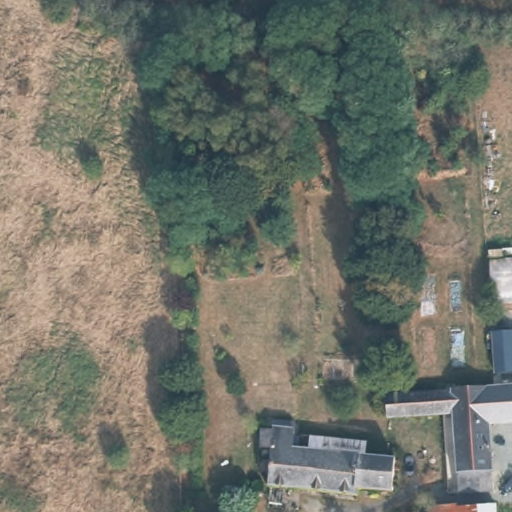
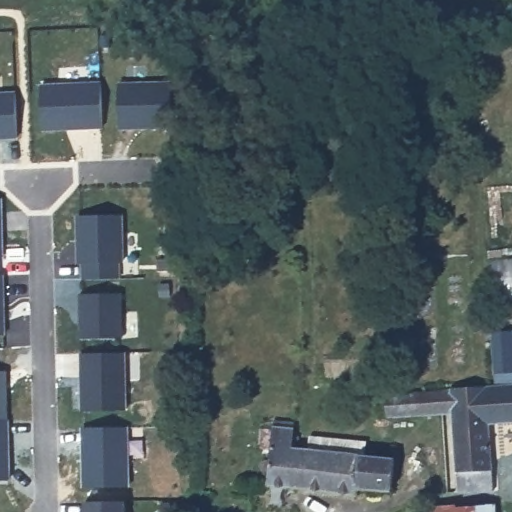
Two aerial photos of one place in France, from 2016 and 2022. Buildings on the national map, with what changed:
new [(102,85),(103,130),(44,132),(42,88),(102,85)]
new [(172,85),(172,129),(121,130),(120,85),(172,85)]
new [(16,95),(17,139),(0,140),(0,96),(16,95)]
new [(1,201),(2,261),(0,261),(0,201),(1,201)]
new [(122,217),(123,265),(119,265),(119,281),(84,281),(84,265),(79,265),(78,219),(122,217)]
new [(3,277),(5,337),(0,337),(0,277),(3,277)]
new [(122,296),(124,340),(82,341),(81,297),(122,296)]
unchanged [(492,346),(491,335),(511,333),(512,345),(512,374),(495,375),(492,346)]
new [(126,355),(127,412),(84,413),(82,356),(126,355)]
new [(7,374),(8,422),(0,423),(0,374),(7,374)]
unchanged [(512,384),(512,423),(488,424),(485,385),(512,384)]
unchanged [(457,471),(452,411),(450,387),(485,385),(492,469),(494,488),(461,491),(457,471)]
unchanged [(450,387),(452,411),(442,411),(385,413),(384,390),(399,390),(450,387)]
new [(8,422),(11,480),(0,480),(0,423),(8,422)]
unchanged [(260,464),(271,464),(271,451),(273,433),(293,435),(292,452),(310,454),(312,439),(367,443),(366,459),(396,461),(393,493),(361,489),(360,495),(269,488),(270,478),(260,477),(260,464)]
new [(125,504),(125,512),(86,512),(86,505),(125,504)]
unchanged [(496,506),(496,512),(460,512),(460,507),(496,506)]
unchanged [(432,512),(432,508),(460,507),(460,512),(432,512)]

